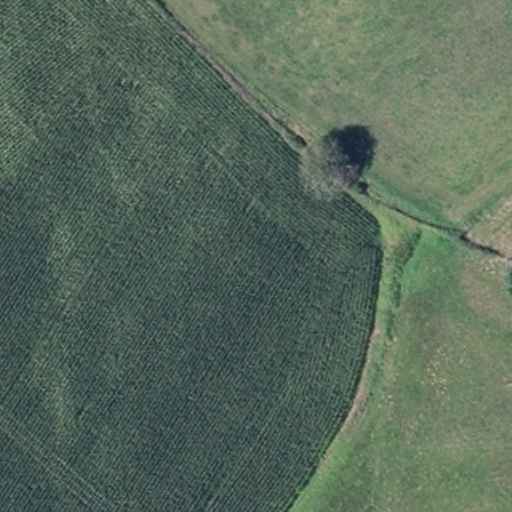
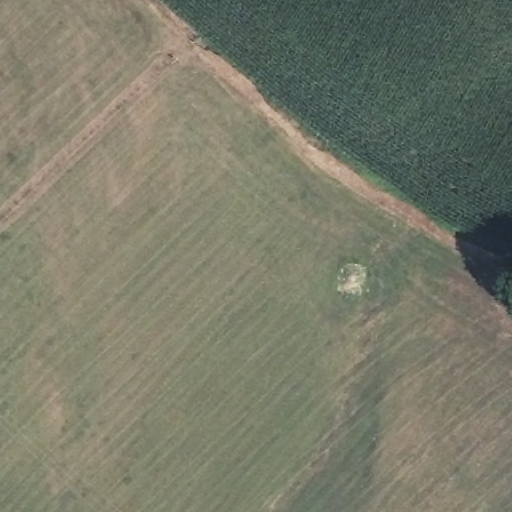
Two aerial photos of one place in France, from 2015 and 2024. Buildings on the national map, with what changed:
[]

